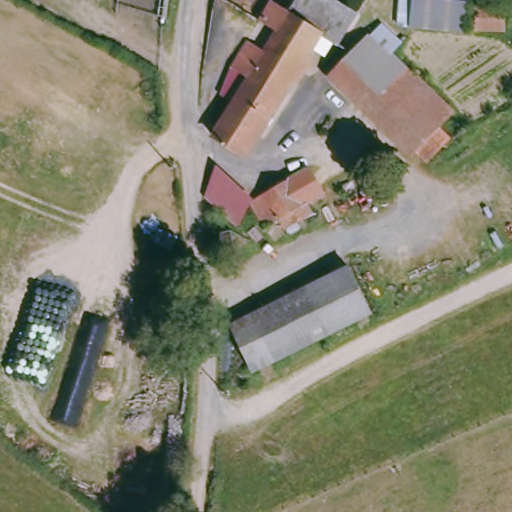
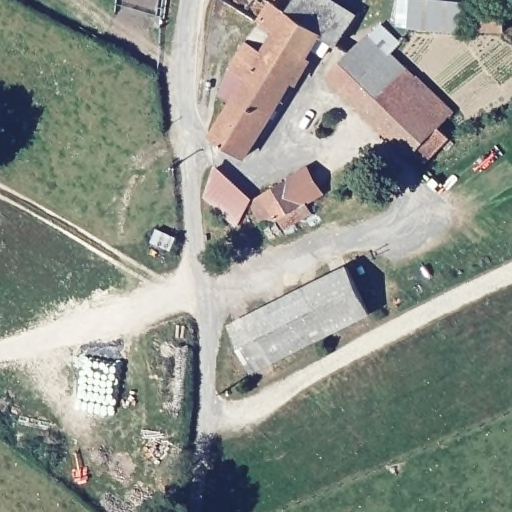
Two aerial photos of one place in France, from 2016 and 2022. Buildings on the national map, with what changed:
unchanged [(345,44),(340,42),(330,56),(320,52),(251,156),(218,135),(238,105),(225,97),(257,44),(271,52),(283,33),(270,25),(281,6),(295,15),(305,0),(323,0),(357,22),(345,44)]
unchanged [(410,26),(404,26),(404,21),(398,21),(400,0),(469,0),(467,30),(410,26)]
unchanged [(472,0),(510,1),(508,28),(470,27),(472,0)]
unchanged [(429,162),(420,153),(412,157),(334,77),(372,40),(390,56),(382,66),(455,136),(429,162)]
unchanged [(207,195),(216,167),(251,201),(236,225),(207,195)]
unchanged [(320,195),(265,226),(252,202),(308,170),(320,195)]
unchanged [(255,368),(233,327),(349,270),(370,311),(255,368)]

